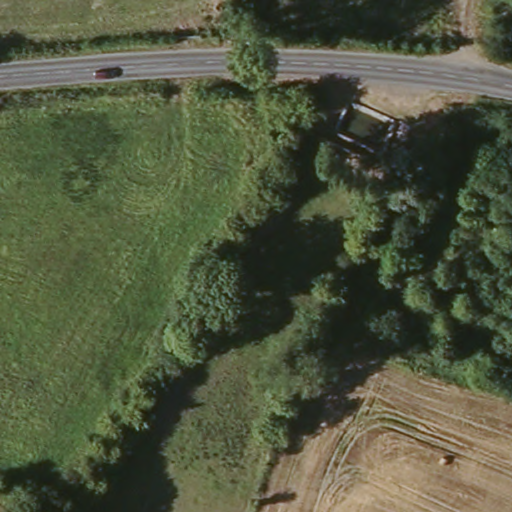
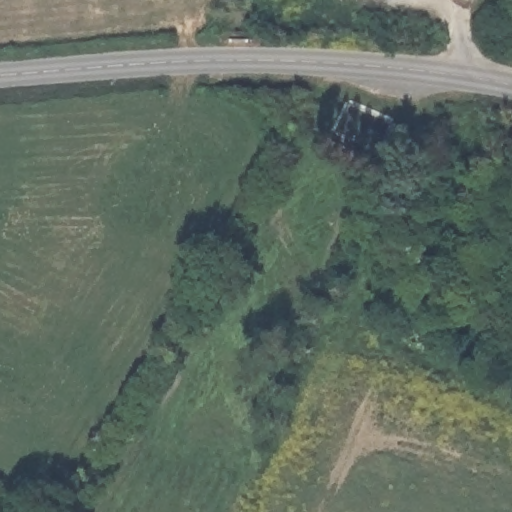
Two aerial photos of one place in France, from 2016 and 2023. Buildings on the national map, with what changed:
unchanged [(407,140),(405,147),(394,143),(396,137),(407,140)]

